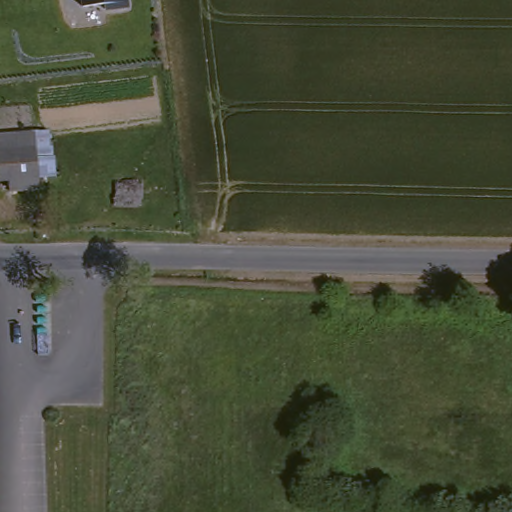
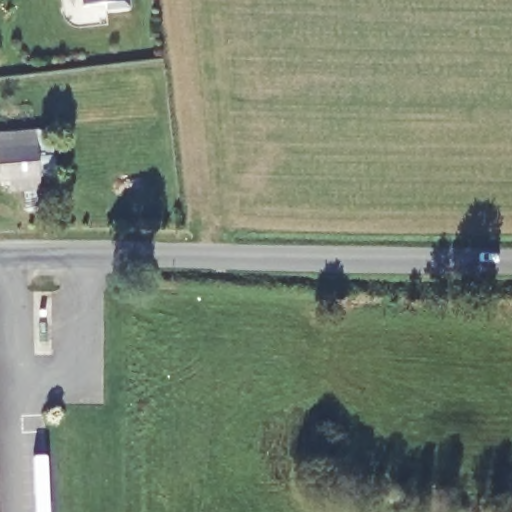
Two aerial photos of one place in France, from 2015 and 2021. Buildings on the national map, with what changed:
unchanged [(106,10),(105,3),(82,5),(81,0),(128,0),(130,8),(106,10)]
unchanged [(0,143),(50,139),(54,170),(0,174),(0,143)]

